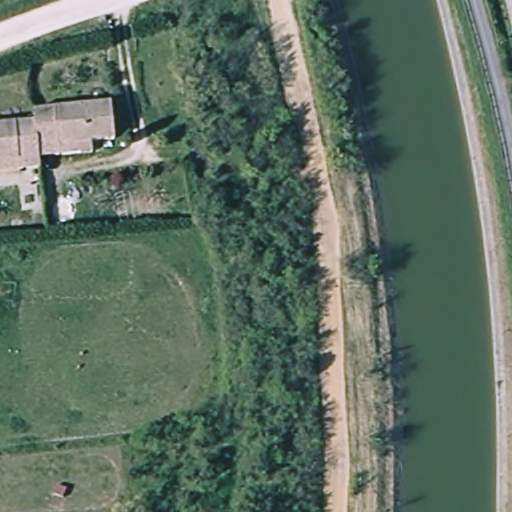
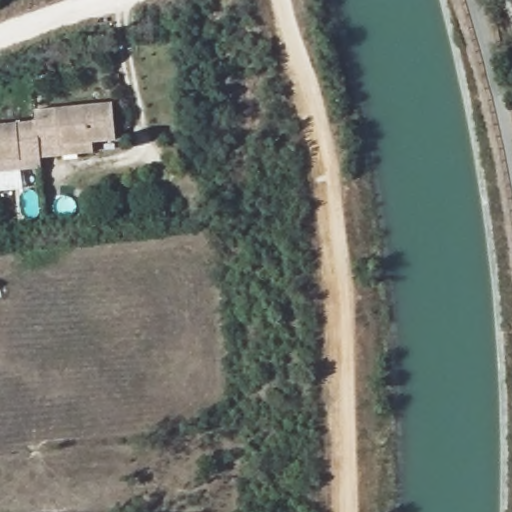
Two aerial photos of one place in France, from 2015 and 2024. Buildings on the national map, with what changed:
unchanged [(62,157),(40,159),(38,122),(38,111),(114,105),(117,142),(93,144),(93,156),(62,157)]
unchanged [(40,159),(42,171),(19,172),(0,173),(0,125),(38,122),(40,159)]

